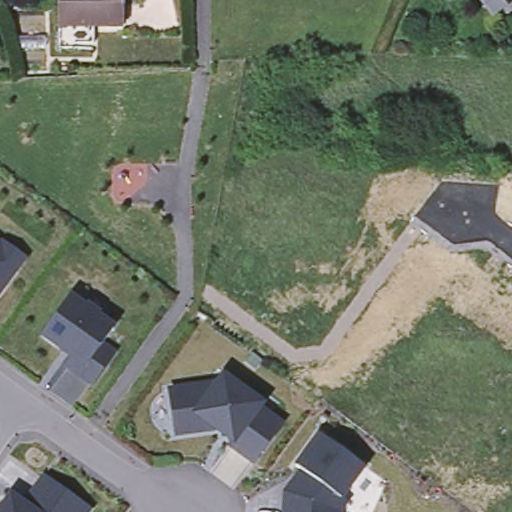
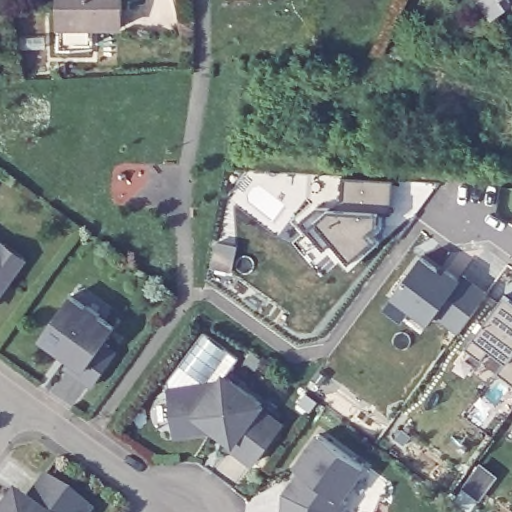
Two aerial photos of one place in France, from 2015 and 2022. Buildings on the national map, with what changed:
unchanged [(57,21),(57,0),(120,0),(121,20),(93,20),(94,41),(58,41),(57,21)]
unchanged [(486,0),(499,0),(491,6),(486,0)]
new [(335,242),(325,251),(299,221),(323,200),(330,206),(343,193),(343,180),(393,181),(393,212),(380,212),(379,224),(371,230),(378,239),(351,261),(335,242)]
unchanged [(3,248),(5,245),(25,260),(17,272),(5,288),(6,289),(0,297),(0,246),(3,248)]
new [(436,314),(431,323),(393,296),(422,255),(447,273),(450,270),(462,278),(465,275),(487,291),(459,330),(436,314)]
new [(512,302),(512,383),(499,372),(508,360),(492,349),(483,361),(467,349),(505,296),(512,302)]
unchanged [(87,308),(88,306),(101,315),(99,317),(115,328),(103,345),(116,355),(94,387),(66,367),(74,355),(63,347),(60,351),(42,338),(71,297),(87,308)]
unchanged [(175,387),(210,382),(218,388),(230,372),(267,400),(264,404),(288,421),(260,460),(235,441),(238,437),(222,425),(181,431),(175,387)]
unchanged [(286,498),(287,497),(288,496),(289,495),(290,495),(295,495),(296,483),(303,473),(298,469),(322,437),(366,470),(343,500),(348,505),(343,512),(285,512),(286,498)]
unchanged [(91,512),(1,512),(5,507),(12,497),(22,505),(24,506),(45,478),(92,511),(91,512)]

